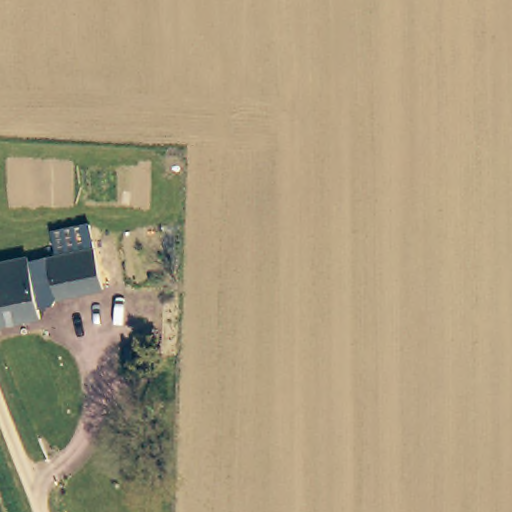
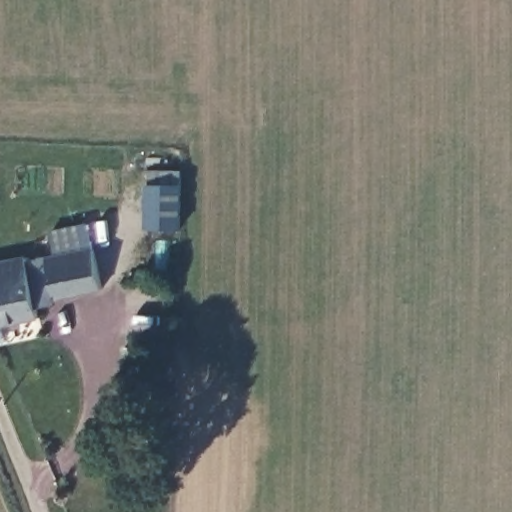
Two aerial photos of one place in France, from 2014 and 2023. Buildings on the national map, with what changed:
new [(147,231),(149,169),(184,170),(184,229),(147,231)]
unchanged [(102,287),(60,294),(56,300),(41,303),(42,312),(0,320),(0,258),(32,253),(32,252),(34,257),(100,246),(107,286),(102,287)]

